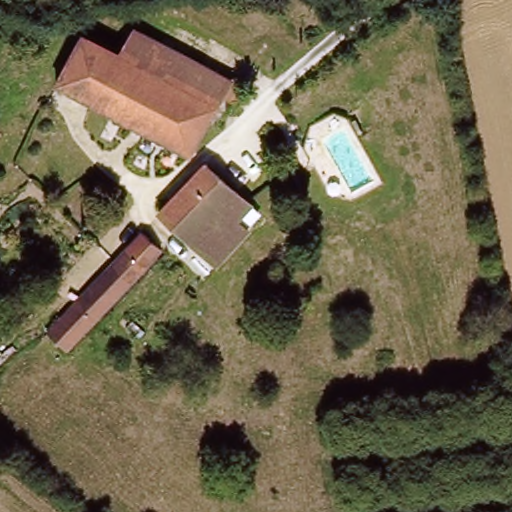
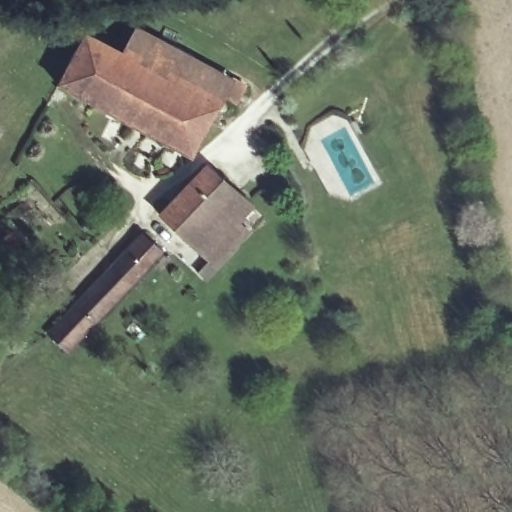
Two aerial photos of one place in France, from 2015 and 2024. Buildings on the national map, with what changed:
unchanged [(237,104),(224,96),(192,155),(107,110),(57,83),(84,33),(124,54),(137,30),(246,88),(237,104)]
unchanged [(365,132),(357,137),(349,124),(357,119),(365,132)]
unchanged [(240,221),(250,231),(217,267),(162,215),(209,163),(254,205),(240,221)]
unchanged [(72,353),(52,334),(139,240),(159,259),(72,353)]

